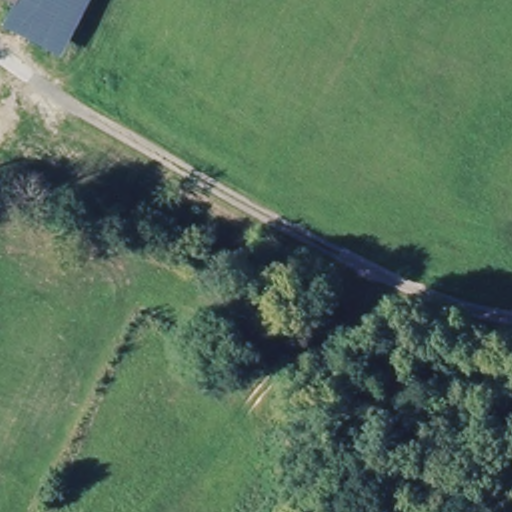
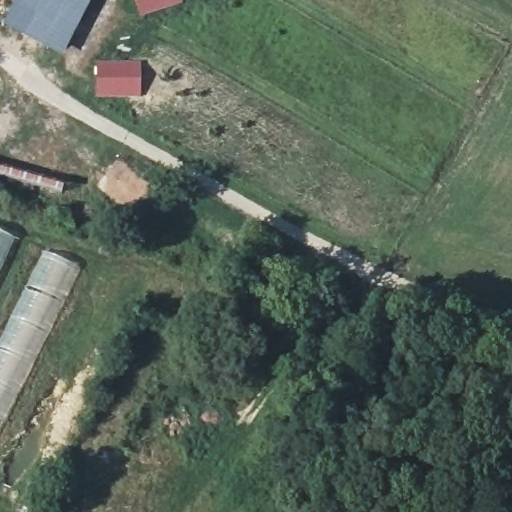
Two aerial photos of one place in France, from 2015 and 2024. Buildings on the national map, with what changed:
unchanged [(0,24),(0,19),(9,0),(69,0),(44,47),(0,24)]
unchanged [(44,47),(69,0),(86,0),(57,54),(44,47)]
new [(139,17),(134,0),(182,0),(182,3),(139,17)]
new [(95,61),(140,60),(141,97),(94,97),(95,61)]
new [(152,187),(135,209),(122,199),(119,204),(97,186),(118,160),(152,187)]
new [(0,271),(0,230),(16,237),(0,271)]
new [(82,266),(61,312),(0,430),(0,337),(43,249),(82,266)]

